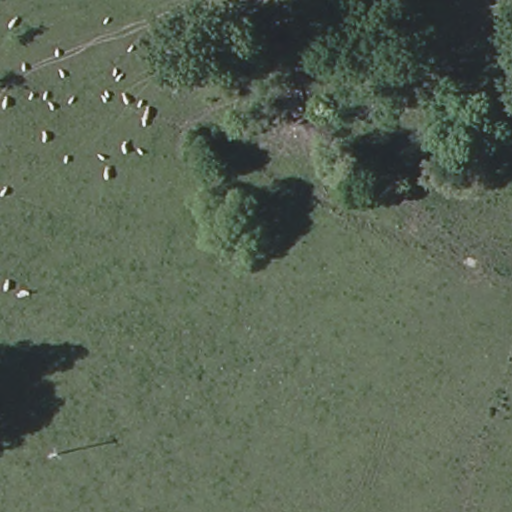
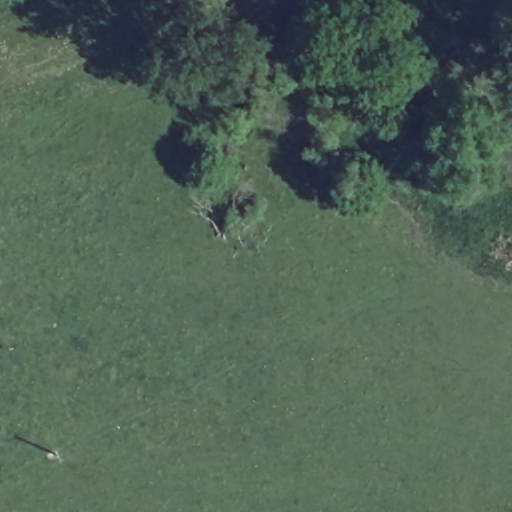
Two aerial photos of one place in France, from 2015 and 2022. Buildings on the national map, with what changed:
unchanged [(352,49),(360,0),(382,0),(376,51),(352,49)]
unchanged [(317,107),(311,109),(300,113),(294,114),(282,61),(304,54),(317,107)]

